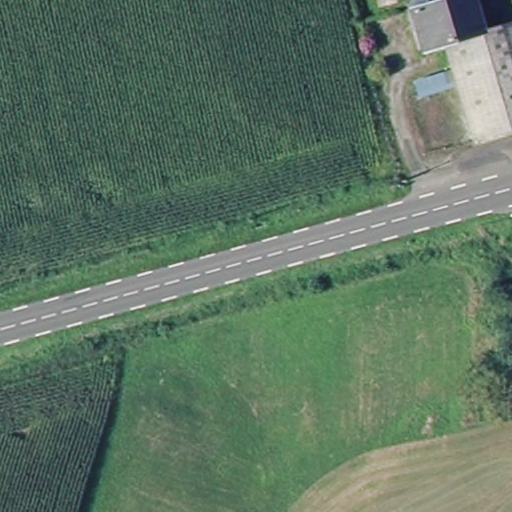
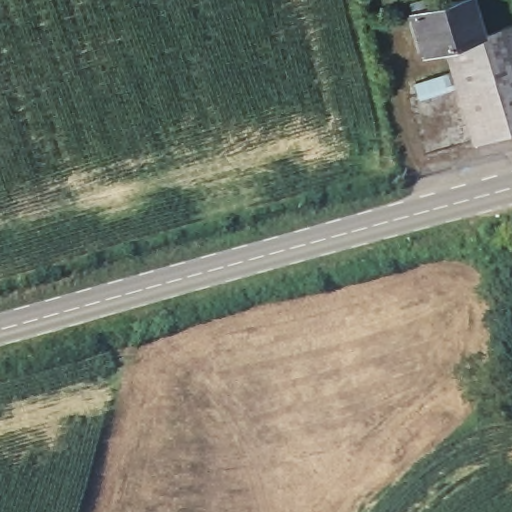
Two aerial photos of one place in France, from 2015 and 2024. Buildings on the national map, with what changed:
unchanged [(433,54),(424,8),(450,0),(488,0),(498,37),(512,36),(512,127),(475,135),(456,53),(433,54)]

